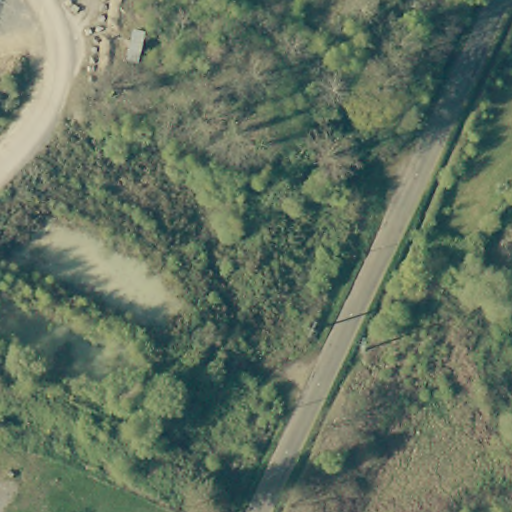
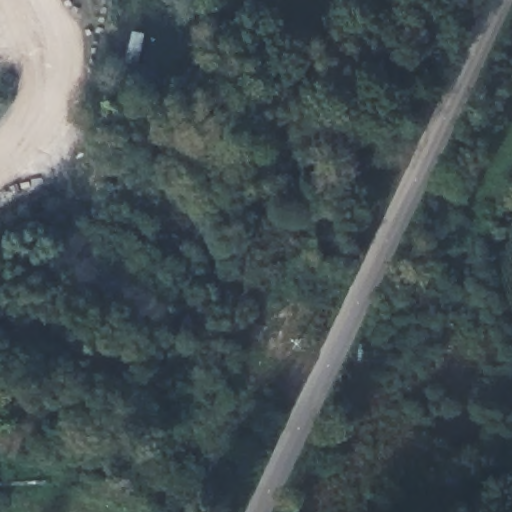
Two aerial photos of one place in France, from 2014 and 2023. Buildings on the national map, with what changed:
unchanged [(383,166),(388,168),(387,170),(376,190),(354,180),(366,157),(383,166)]

